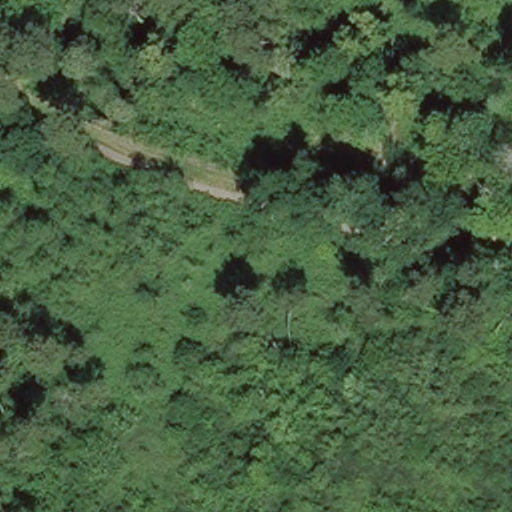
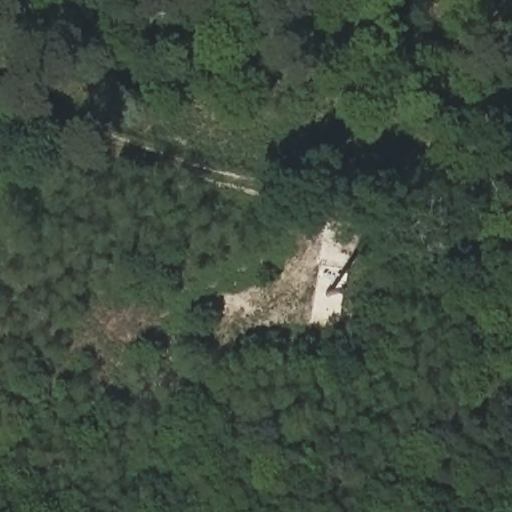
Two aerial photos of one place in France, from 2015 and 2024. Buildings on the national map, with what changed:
[]

